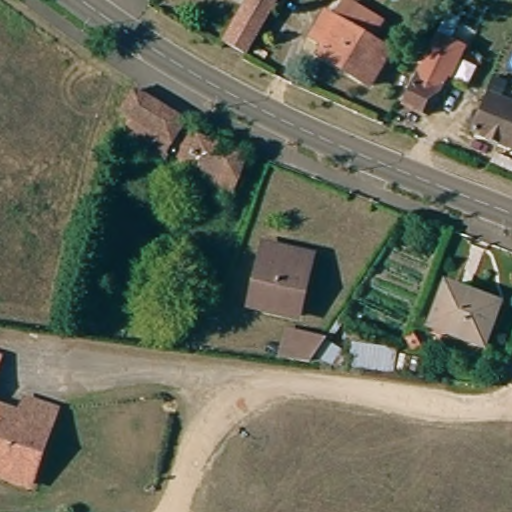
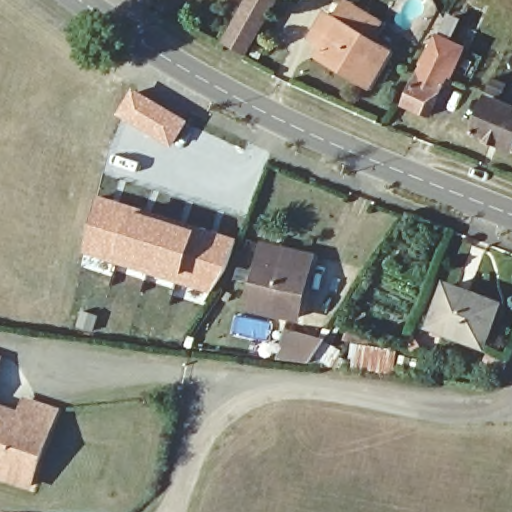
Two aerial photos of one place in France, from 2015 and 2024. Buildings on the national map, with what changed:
unchanged [(225,40),(248,0),(278,0),(249,53),(225,40)]
unchanged [(349,0),(384,20),(375,41),(335,16),(344,0),(349,0)]
unchanged [(323,51),(327,44),(317,37),(331,14),(393,52),(372,89),(355,78),(319,57),(323,51)]
unchanged [(410,97),(428,57),(426,56),(440,27),(467,39),(454,69),(451,68),(433,107),(410,97)]
unchanged [(125,123),(131,113),(123,108),(135,86),(186,116),(174,137),(167,148),(125,123)]
unchanged [(478,137),(493,99),(504,103),(512,106),(512,151),(478,137)]
unchanged [(247,153),(231,197),(183,180),(201,135),(247,153)]
new [(99,195),(125,203),(161,218),(237,238),(227,269),(209,295),(81,254),(99,195)]
unchanged [(253,306),(263,264),(267,248),(311,259),(307,275),(296,317),(253,306)]
unchanged [(498,308),(488,340),(432,326),(442,294),(498,308)]
unchanged [(395,375),(348,367),(351,343),(342,342),(345,329),(367,338),(366,347),(399,349),(395,375)]
unchanged [(276,359),(290,333),(316,346),(306,363),(276,359)]
unchanged [(27,401),(56,410),(29,489),(0,481),(0,407),(24,414),(27,401)]

